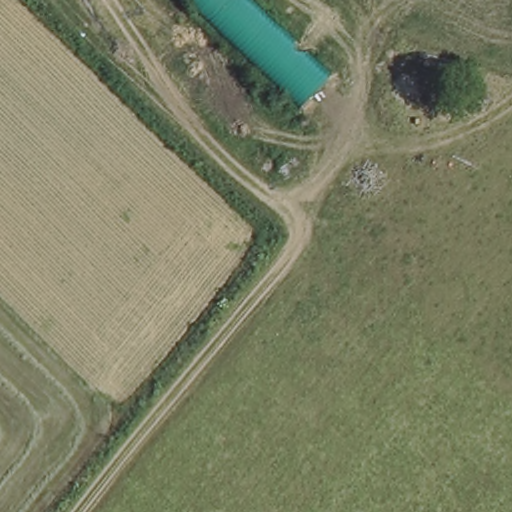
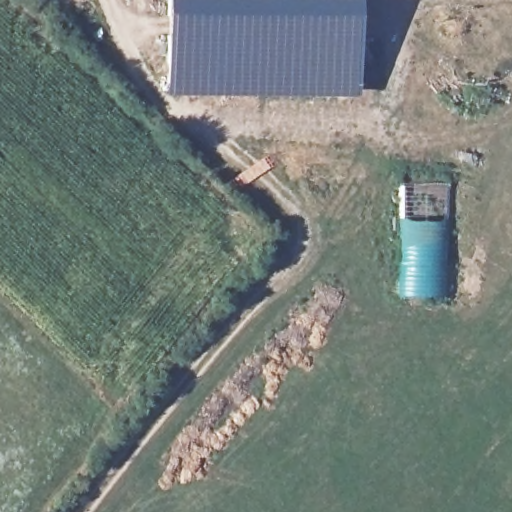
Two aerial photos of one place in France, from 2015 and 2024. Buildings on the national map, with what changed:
new [(359,0),(359,98),(168,95),(168,0),(359,0)]
demolished [(190,0),(255,0),(335,75),(305,107),(190,0)]
new [(449,186),(449,297),(398,295),(400,186),(449,186)]

